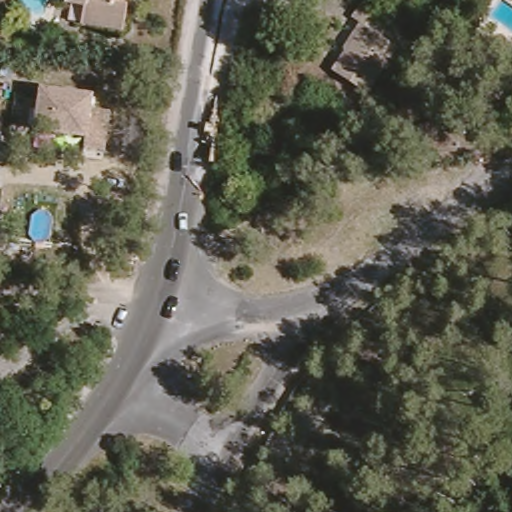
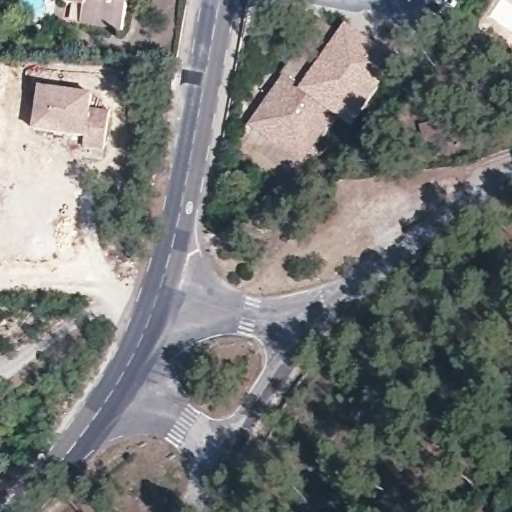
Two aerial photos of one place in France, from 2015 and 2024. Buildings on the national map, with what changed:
unchanged [(117,21),(77,15),(78,0),(121,0),(117,21)]
demolished [(358,5),(386,22),(377,35),(395,47),(365,94),(329,70),(342,50),(360,24),(350,16),(358,5)]
new [(398,62),(357,130),(336,116),(304,165),(248,128),(322,20),(342,33),(348,24),(398,62)]
unchanged [(92,95),(90,110),(110,112),(105,150),(83,147),(85,137),(35,130),(40,87),(92,95)]
unchanged [(449,135),(422,138),(421,125),(447,121),(449,135)]

